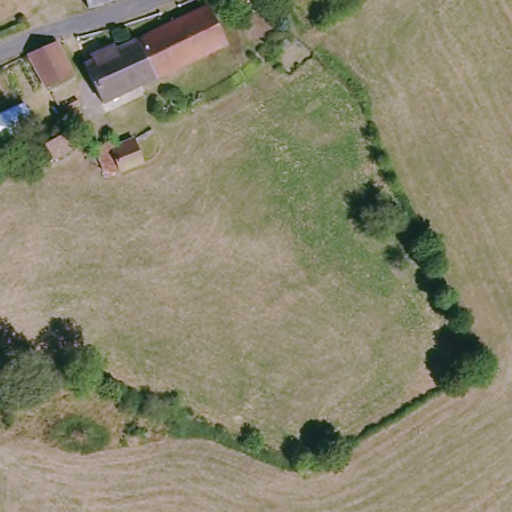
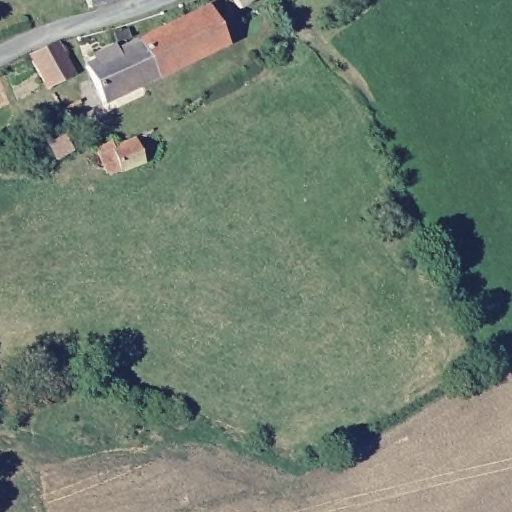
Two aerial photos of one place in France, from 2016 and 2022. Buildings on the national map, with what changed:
unchanged [(87,0),(117,0),(90,9),(87,0)]
unchanged [(233,0),(264,0),(242,14),(233,0)]
unchanged [(223,44),(101,104),(82,65),(204,9),(223,44)]
unchanged [(70,75),(43,85),(25,56),(55,45),(70,75)]
unchanged [(150,172),(115,176),(110,174),(97,154),(112,148),(117,155),(140,147),(150,172)]

